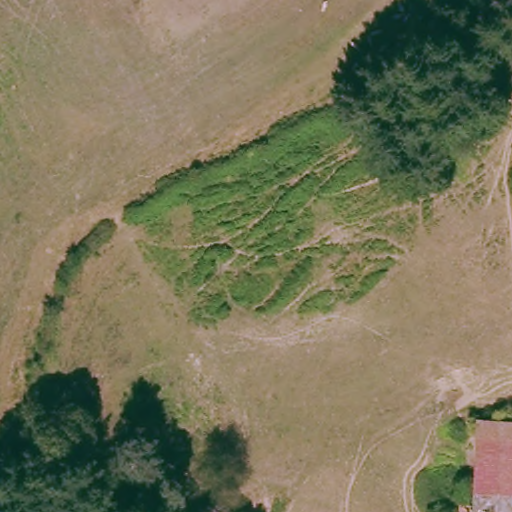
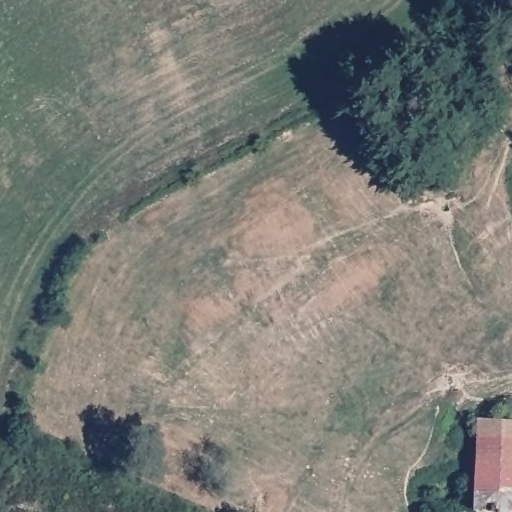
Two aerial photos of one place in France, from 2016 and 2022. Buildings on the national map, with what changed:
unchanged [(512,512),(472,512),(474,422),(512,424),(512,512)]

